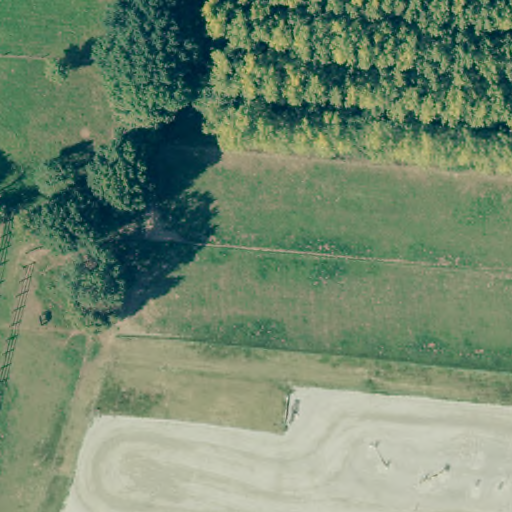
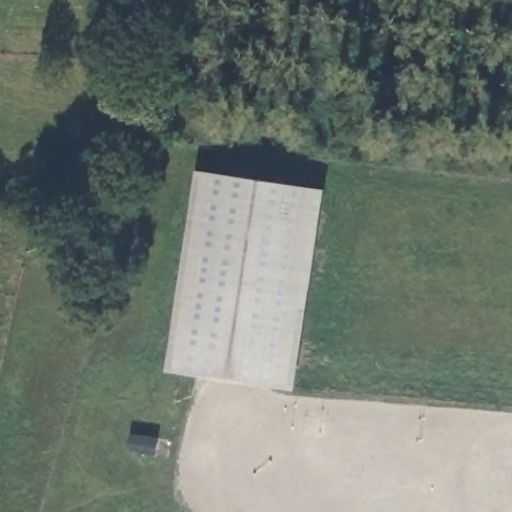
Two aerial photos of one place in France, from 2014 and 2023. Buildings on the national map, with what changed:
new [(167,372),(197,172),(324,192),(295,393),(167,372)]

